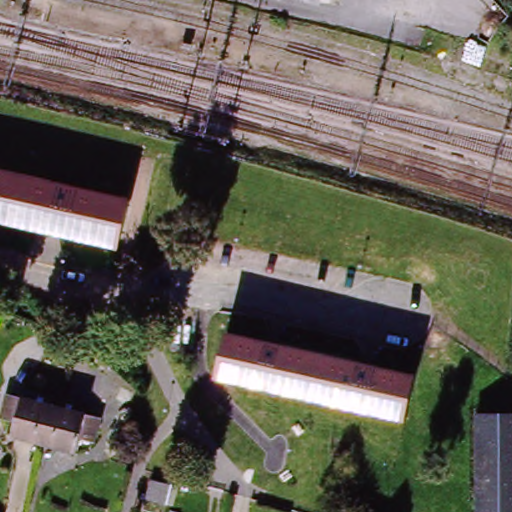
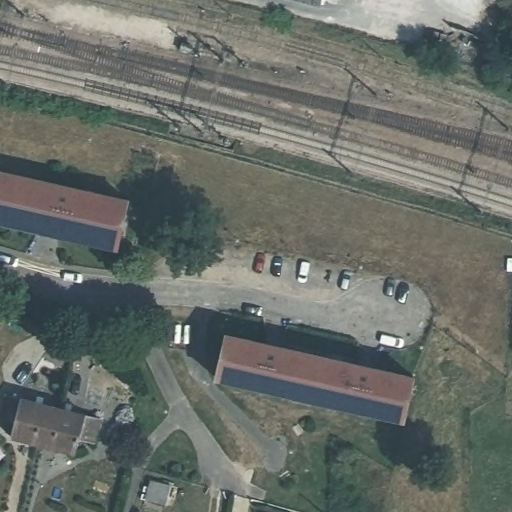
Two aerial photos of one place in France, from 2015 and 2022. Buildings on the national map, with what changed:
unchanged [(116,250),(0,220),(0,176),(126,208),(116,250)]
unchanged [(224,373),(232,337),(415,378),(407,417),(224,377),(224,373)]
unchanged [(8,433),(11,416),(0,413),(0,400),(2,392),(54,404),(51,420),(38,417),(35,439),(8,433)]
unchanged [(73,433),(69,447),(35,439),(38,417),(51,420),(54,404),(93,412),(88,435),(73,433)]
demolished [(481,413),(503,414),(500,512),(477,512),(481,413)]
demolished [(512,414),(512,512),(500,512),(503,414),(512,414)]

